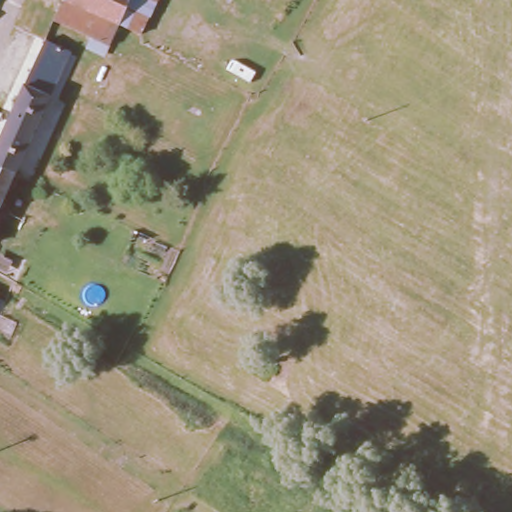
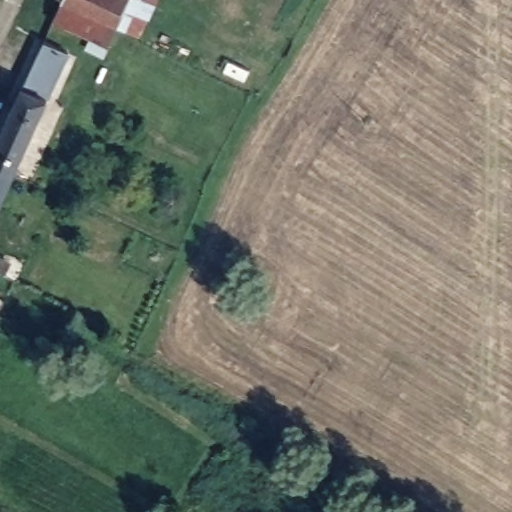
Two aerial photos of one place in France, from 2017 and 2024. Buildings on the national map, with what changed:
unchanged [(63,0),(64,0),(119,23),(109,46),(53,21),(63,0)]
unchanged [(64,0),(129,0),(119,23),(64,0)]
unchanged [(119,23),(129,0),(153,0),(139,32),(119,23)]
unchanged [(35,42),(60,53),(39,99),(14,88),(35,42)]
unchanged [(39,99),(7,171),(0,168),(0,121),(14,88),(39,99)]
unchanged [(7,171),(0,187),(0,168),(7,171)]

